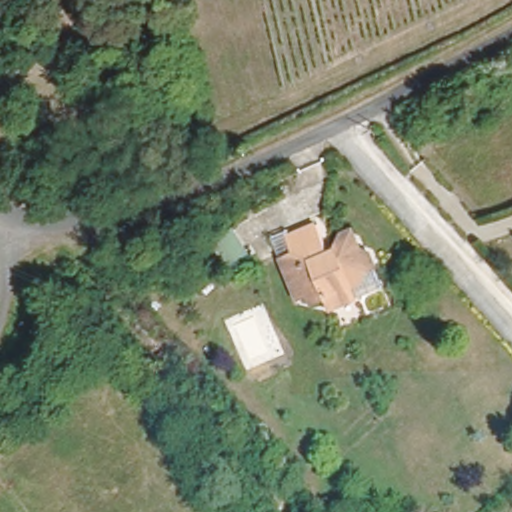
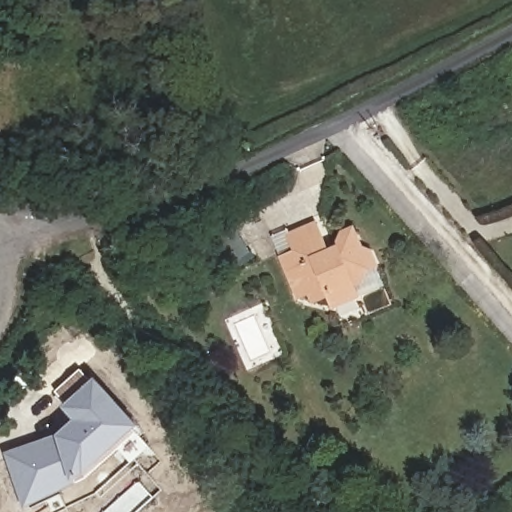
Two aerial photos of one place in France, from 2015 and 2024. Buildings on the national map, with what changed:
unchanged [(315,223),(328,251),(335,248),(341,233),(357,239),(361,248),(371,251),(385,284),(334,307),(329,296),(313,303),(308,294),(298,298),(281,258),(292,253),(285,236),(315,223)]
new [(58,436),(74,421),(64,408),(68,403),(56,392),(81,369),(94,381),(95,379),(142,429),(91,477),(79,485),(76,483),(26,508),(6,454),(58,436)]

